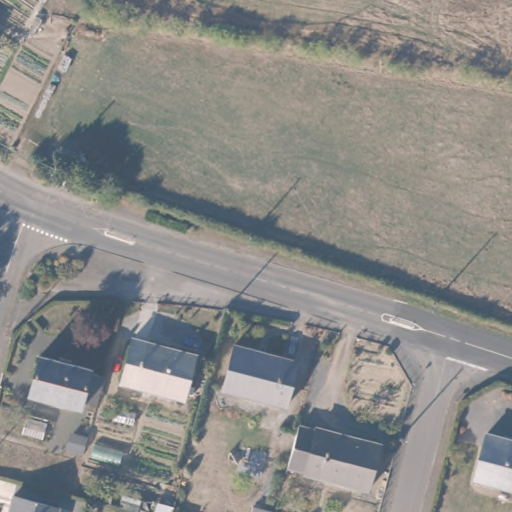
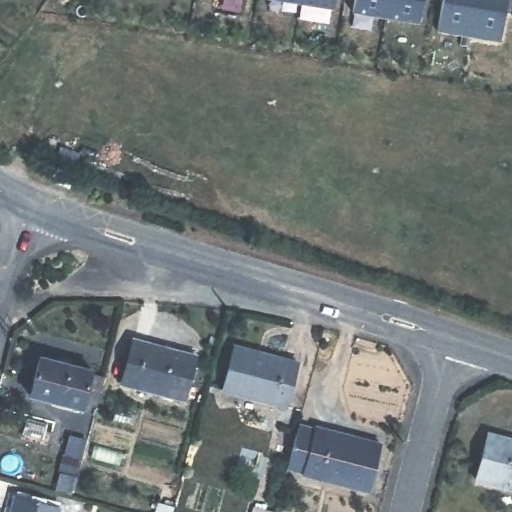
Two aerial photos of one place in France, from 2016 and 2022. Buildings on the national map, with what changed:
new [(332,9),(280,0),(334,0),(332,9)]
new [(416,22),(352,11),(354,0),(421,0),(416,22)]
new [(498,41),(437,31),(442,0),(506,0),(498,41)]
unchanged [(190,360),(179,401),(116,383),(127,341),(190,360)]
unchanged [(291,361),(280,406),(224,391),(236,346),(291,361)]
unchanged [(82,366),(81,371),(96,375),(87,407),(70,402),(68,411),(20,397),(34,352),(82,366)]
unchanged [(373,448),(360,494),(302,478),(298,472),(285,469),(295,431),(310,436),(312,431),(373,448)]
unchanged [(512,491),(466,478),(479,433),(512,442),(512,491)]
unchanged [(121,512),(118,511),(123,499),(153,507),(155,499),(174,503),(172,512),(121,512)]
unchanged [(7,512),(10,500),(55,512),(7,512)]

